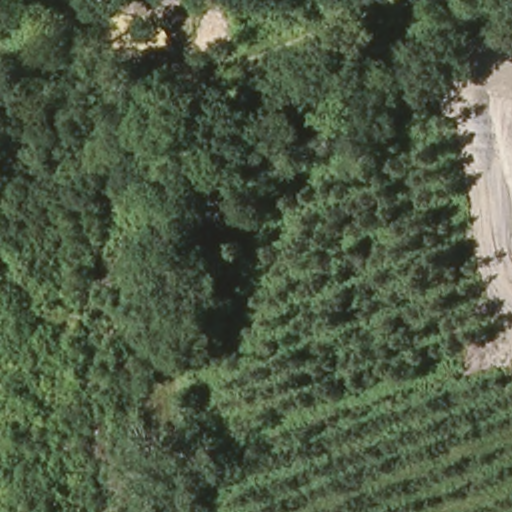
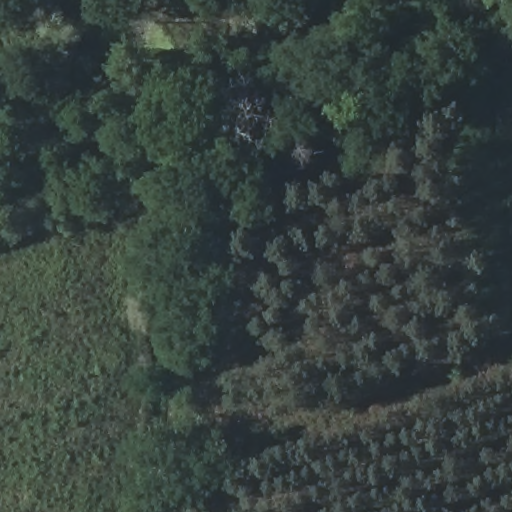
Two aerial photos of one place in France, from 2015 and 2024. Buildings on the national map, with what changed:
[]

